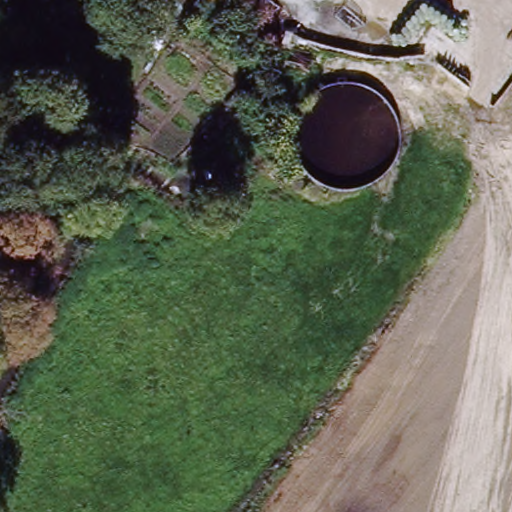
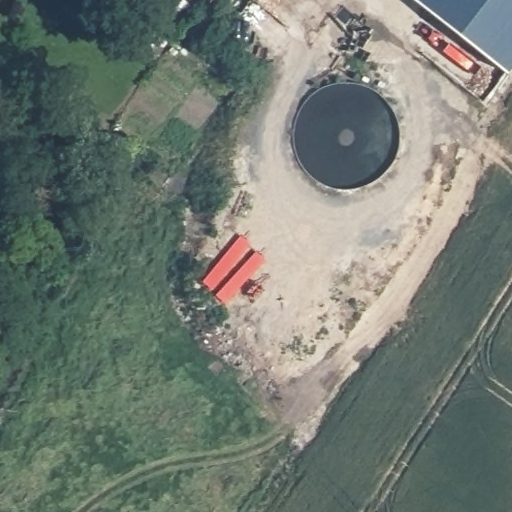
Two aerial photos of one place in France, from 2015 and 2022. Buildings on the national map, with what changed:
demolished [(340,0),(341,0),(341,1),(340,0)]
new [(408,0),(512,0),(512,53),(499,70),(408,0)]

